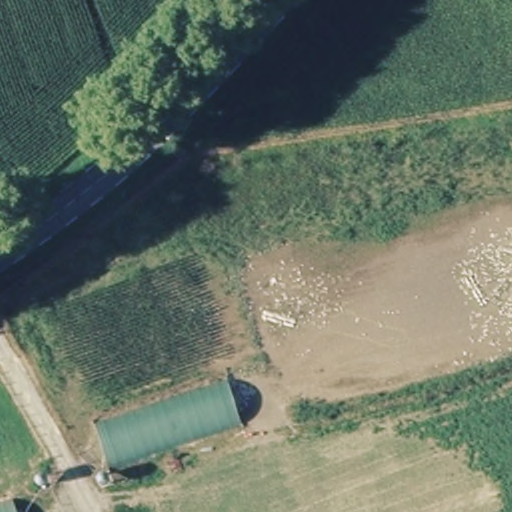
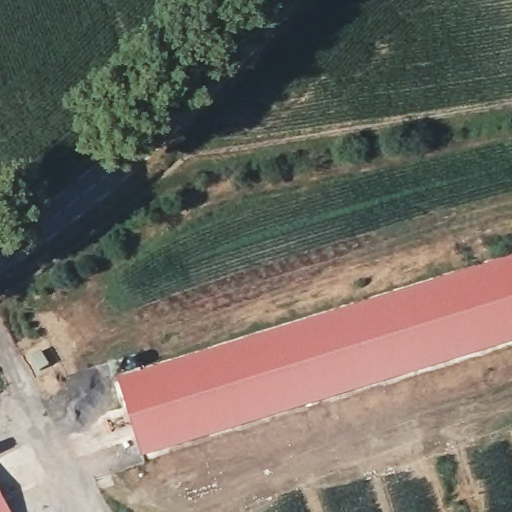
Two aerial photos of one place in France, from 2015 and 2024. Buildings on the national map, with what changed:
new [(118,381),(512,258),(512,340),(141,455),(134,433),(126,407),(118,381)]
demolished [(229,380),(243,421),(109,466),(95,423),(229,380)]
new [(0,512),(0,496),(9,512),(0,512)]
demolished [(19,512),(0,512),(0,502),(14,497),(19,512)]

